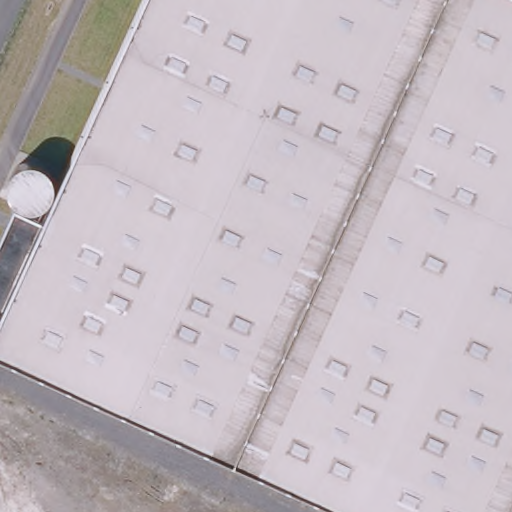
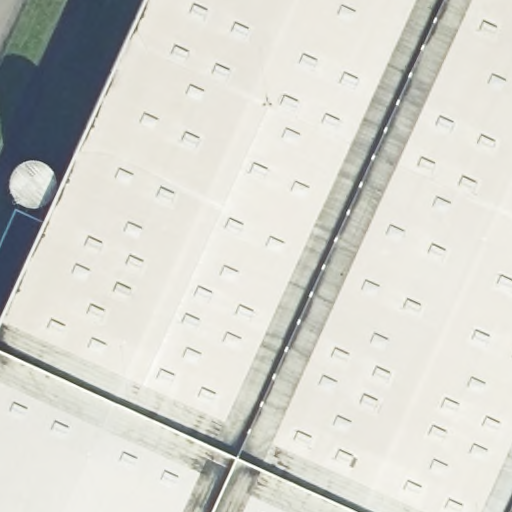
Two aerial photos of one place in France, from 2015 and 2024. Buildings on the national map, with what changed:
unchanged [(41,238),(149,0),(512,0),(512,512),(317,512),(0,369),(0,255),(14,225),(41,238)]
new [(0,369),(317,512),(0,512),(0,369)]

